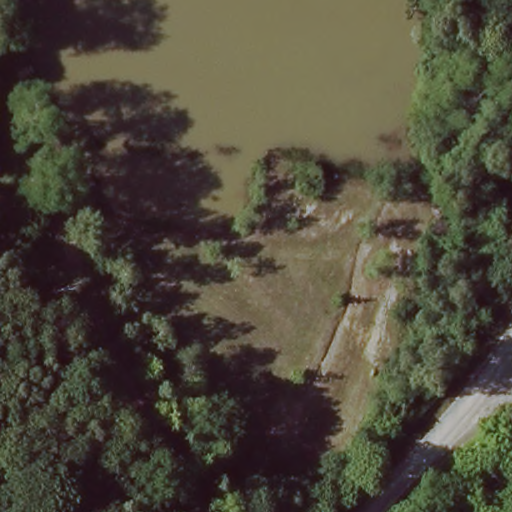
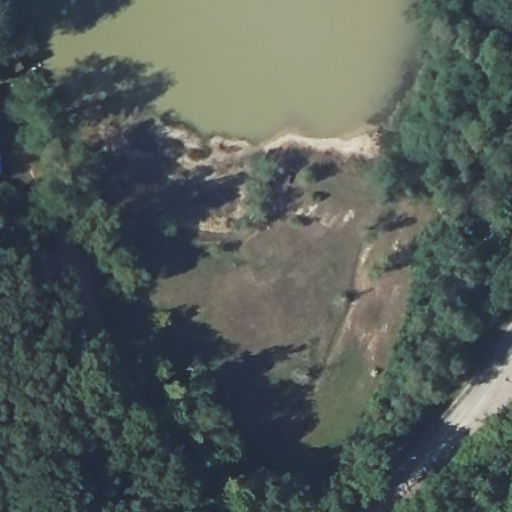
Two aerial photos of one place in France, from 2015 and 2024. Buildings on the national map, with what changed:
[]

